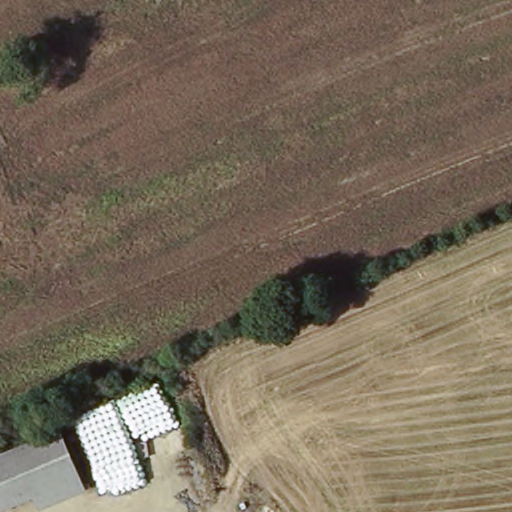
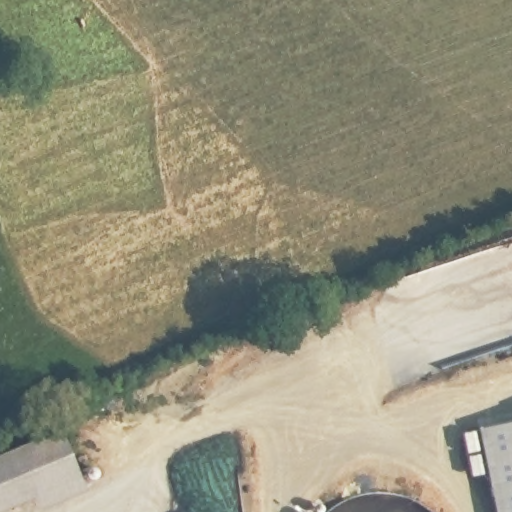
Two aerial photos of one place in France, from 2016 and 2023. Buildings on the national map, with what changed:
new [(512,512),(495,512),(478,430),(512,423),(512,512)]
unchanged [(63,426),(89,488),(42,508),(36,495),(0,510),(0,453),(63,426)]

